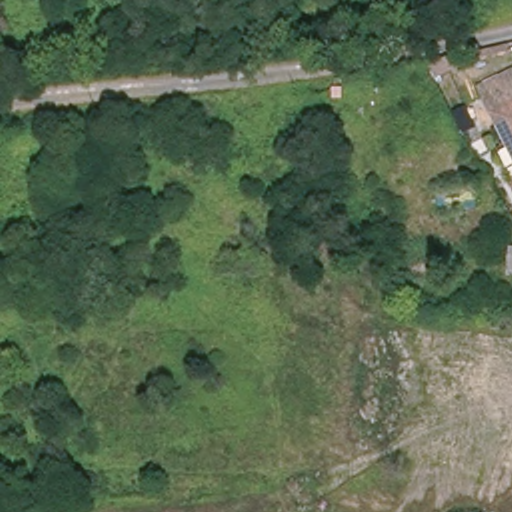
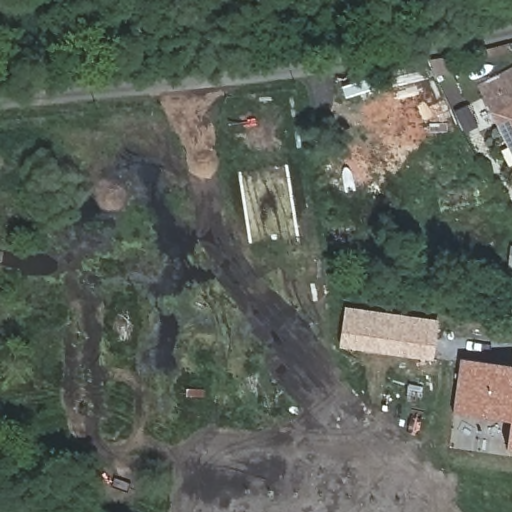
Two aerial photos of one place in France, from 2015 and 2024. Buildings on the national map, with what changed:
unchanged [(480,86),(512,70),(512,152),(480,86)]
unchanged [(476,127),(465,134),(463,134),(458,122),(453,111),(466,105),(476,127)]
unchanged [(507,274),(510,247),(512,248),(512,274),(507,274)]
new [(440,317),(435,361),(340,348),(345,307),(440,317)]
new [(512,363),(512,419),(457,415),(462,360),(512,363)]

